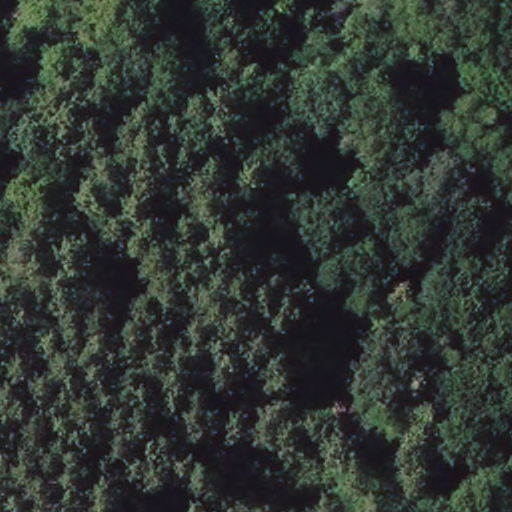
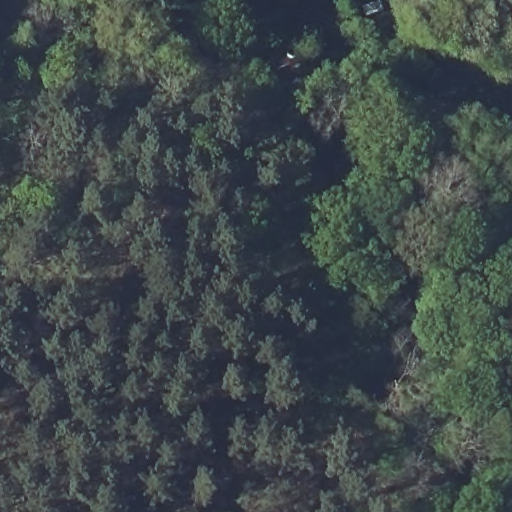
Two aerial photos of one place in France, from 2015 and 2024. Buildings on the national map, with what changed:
[]

